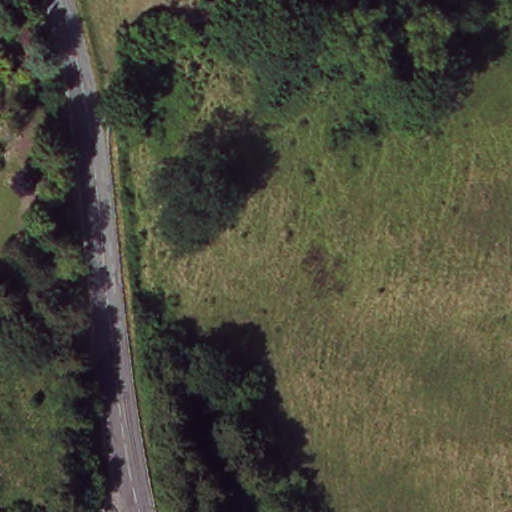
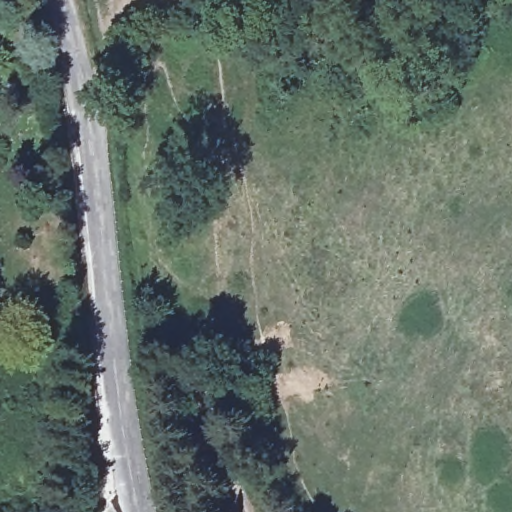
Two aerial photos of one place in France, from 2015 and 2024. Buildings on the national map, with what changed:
unchanged [(219,480),(190,481),(189,450),(217,448),(219,480)]

